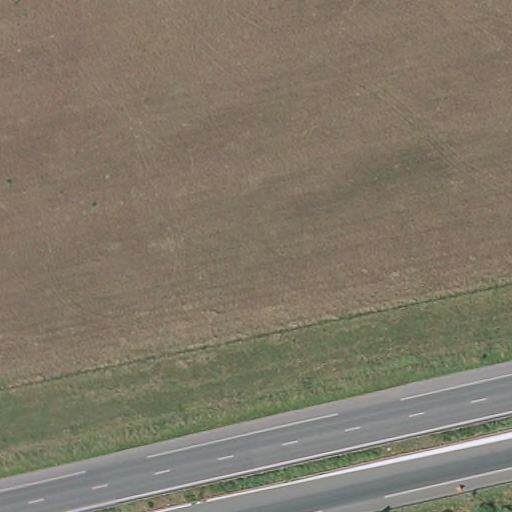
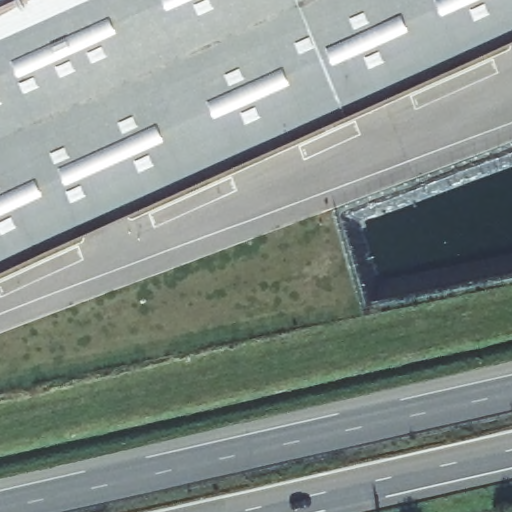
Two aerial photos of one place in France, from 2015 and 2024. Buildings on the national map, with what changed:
new [(512,36),(0,267),(0,0),(512,0),(512,36)]

